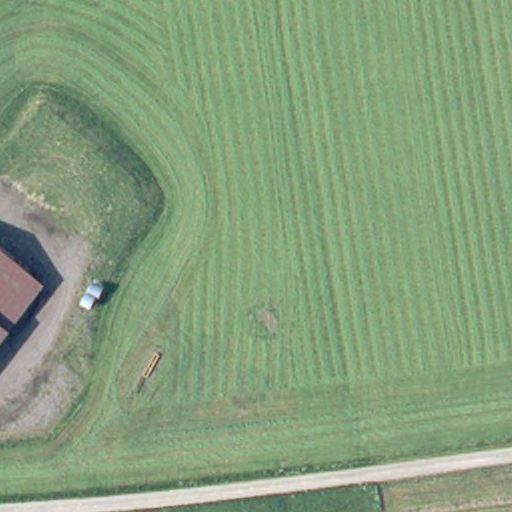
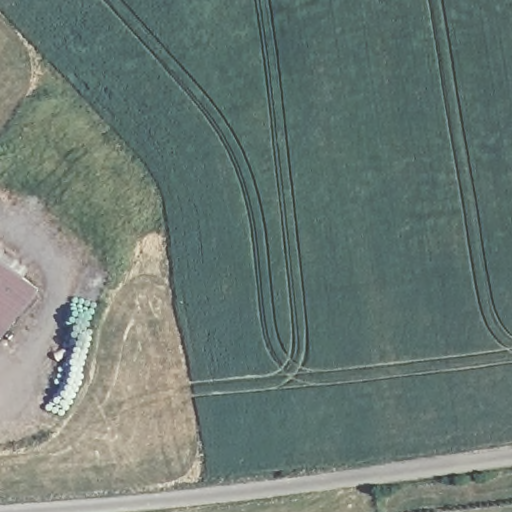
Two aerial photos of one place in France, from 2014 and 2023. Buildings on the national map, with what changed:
unchanged [(35,279),(0,326),(0,253),(35,279)]

